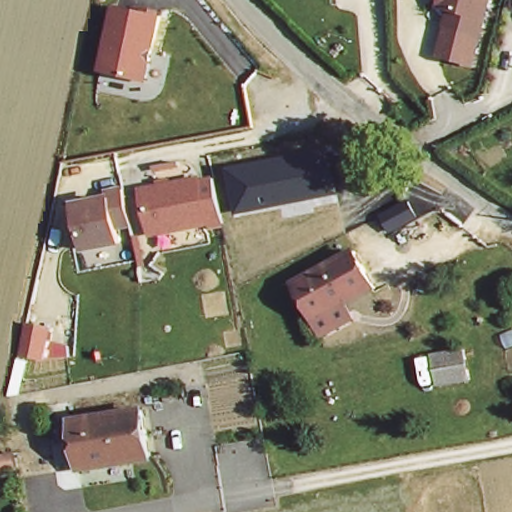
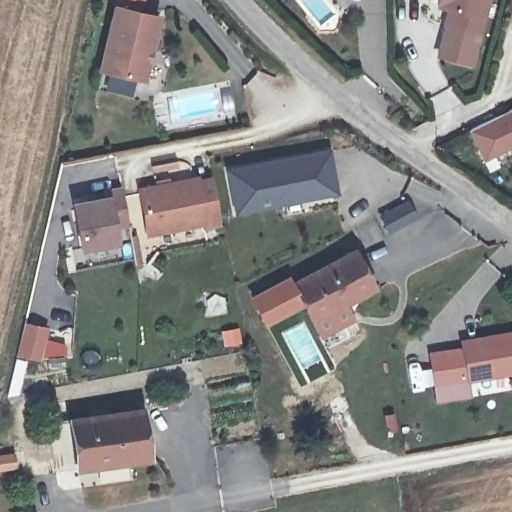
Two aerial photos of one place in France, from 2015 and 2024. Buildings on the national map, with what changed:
unchanged [(481,34),(459,30),(459,16),(443,12),(436,10),(437,0),(488,0),(481,34)]
unchanged [(146,79),(100,73),(112,2),(160,12),(146,79)]
unchanged [(472,69),(434,58),(443,12),(459,16),(459,30),(481,34),(472,69)]
new [(512,108),(512,147),(481,162),(467,130),(512,108)]
unchanged [(335,149),(343,189),(244,209),(236,168),(335,149)]
unchanged [(220,225),(147,239),(138,188),(211,175),(220,225)]
unchanged [(122,185),(131,225),(116,229),(120,245),(80,252),(70,202),(103,195),(103,190),(122,185)]
new [(413,201),(421,216),(395,230),(387,215),(413,201)]
unchanged [(311,323),(291,280),(356,246),(380,290),(311,323)]
unchanged [(24,319),(46,323),(40,355),(18,351),(24,319)]
new [(471,396),(435,401),(428,352),(460,345),(459,340),(512,330),(512,373),(469,381),(471,396)]
demolished [(429,350),(466,344),(472,382),(438,388),(429,350)]
unchanged [(142,412),(151,462),(80,476),(71,425),(142,412)]

